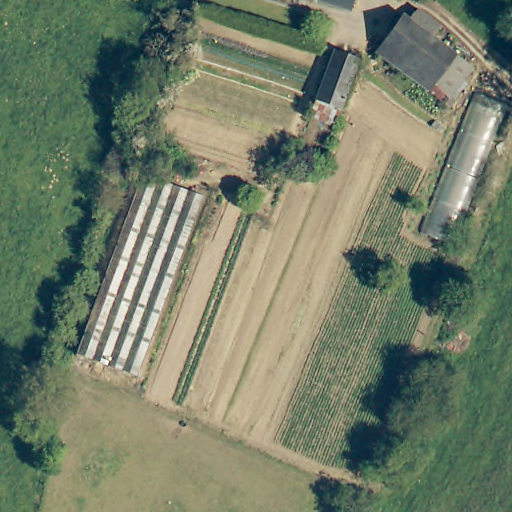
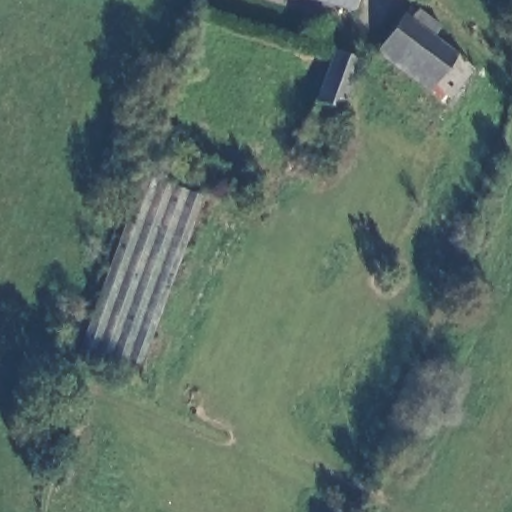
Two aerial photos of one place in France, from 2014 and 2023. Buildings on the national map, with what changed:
unchanged [(326,0),(364,0),(361,11),(326,0)]
unchanged [(446,104),(429,91),(376,52),(403,15),(410,20),(418,9),(441,25),(432,37),(456,54),(473,67),(446,104)]
unchanged [(364,50),(340,114),(317,105),(337,51),(341,41),(364,50)]
demolished [(452,247),(418,229),(477,89),(509,105),(452,247)]
unchanged [(204,196),(137,378),(77,355),(143,174),(204,196)]

